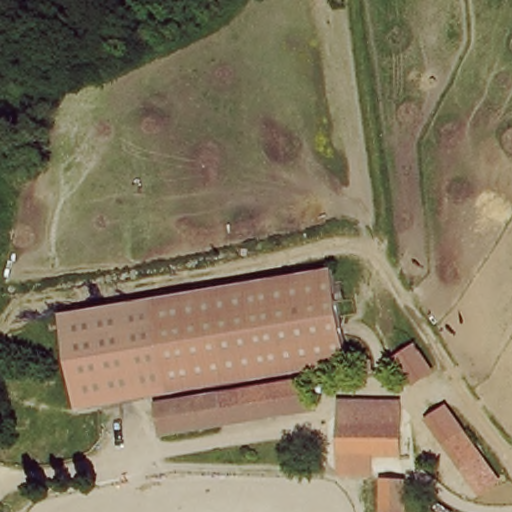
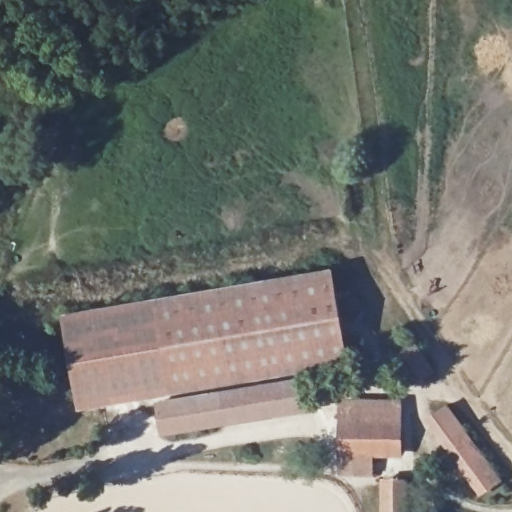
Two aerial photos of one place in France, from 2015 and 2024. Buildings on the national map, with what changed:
unchanged [(345,368),(75,411),(59,313),(329,269),(345,368)]
unchanged [(306,379),(313,414),(159,440),(154,404),(306,379)]
unchanged [(405,403),(409,458),(378,458),(378,477),(345,479),(344,404),(405,403)]
unchanged [(447,448),(470,432),(489,459),(468,476),(447,448)]
unchanged [(414,486),(415,512),(388,512),(388,484),(414,486)]

